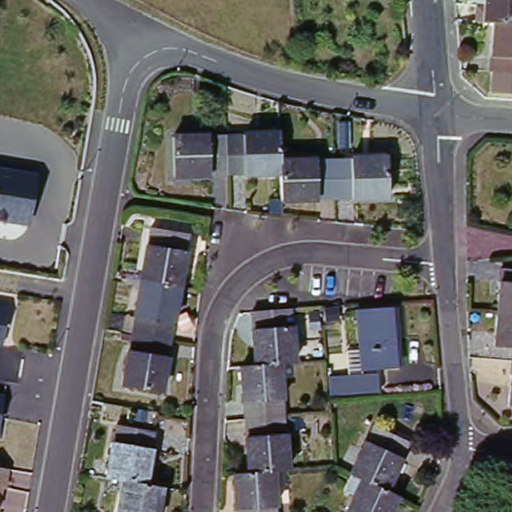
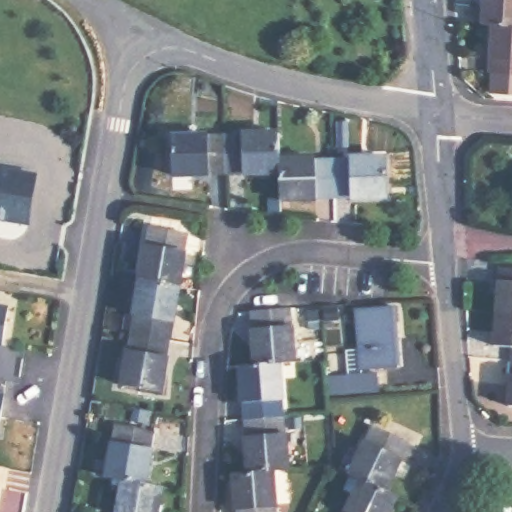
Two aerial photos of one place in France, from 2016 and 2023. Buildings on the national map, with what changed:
unchanged [(489,0),(512,0),(512,20),(496,19),(488,19),(489,0)]
unchanged [(496,19),(512,20),(512,70),(495,69),(496,19)]
unchanged [(348,124),(348,149),(338,149),(337,125),(348,124)]
unchanged [(230,136),(283,135),(283,161),(284,176),(230,177),(230,136)]
unchanged [(178,178),(176,137),(230,136),(230,177),(178,178)]
unchanged [(338,160),(390,158),(392,199),(340,200),(338,160)]
unchanged [(283,161),(338,160),(340,200),(285,202),(284,176),(283,161)]
unchanged [(42,176),(33,224),(0,219),(0,169),(42,176)]
unchanged [(153,234),(192,241),(184,294),(145,285),(153,234)]
unchanged [(512,276),(512,321),(497,319),(501,275),(512,276)]
unchanged [(184,294),(175,347),(136,339),(145,285),(184,294)]
unchanged [(395,289),(400,348),(366,352),(360,292),(395,289)]
unchanged [(2,348),(0,348),(0,305),(9,306),(2,348)]
unchanged [(336,310),(338,322),(325,323),(324,311),(336,310)]
unchanged [(259,371),(255,318),(296,316),(299,368),(286,369),(259,371)]
unchanged [(512,354),(493,352),(497,319),(512,321),(512,354)]
unchanged [(175,347),(167,399),(127,392),(136,339),(175,347)]
unchanged [(334,358),(383,355),(384,373),(335,377),(334,358)]
unchanged [(244,372),(259,371),(286,369),(290,424),(248,427),(244,372)]
unchanged [(512,372),(512,412),(508,411),(512,372)]
unchanged [(6,395),(0,425),(0,394),(6,395)]
unchanged [(290,424),(293,477),(277,478),(252,480),(248,427),(290,424)]
unchanged [(366,433),(403,450),(380,497),(344,481),(366,433)]
unchanged [(104,489),(114,436),(153,442),(145,495),(121,491),(104,489)]
unchanged [(8,467),(0,507),(0,466),(8,467)]
unchanged [(277,478),(280,512),(241,512),(238,481),(252,480),(277,478)]
unchanged [(348,502),(337,497),(344,481),(380,497),(392,502),(388,512),(343,512),(348,502)]
unchanged [(121,491),(145,495),(162,499),(160,512),(117,512),(121,491)]

